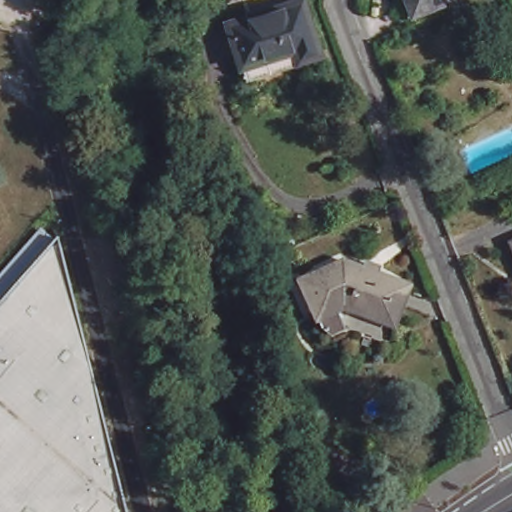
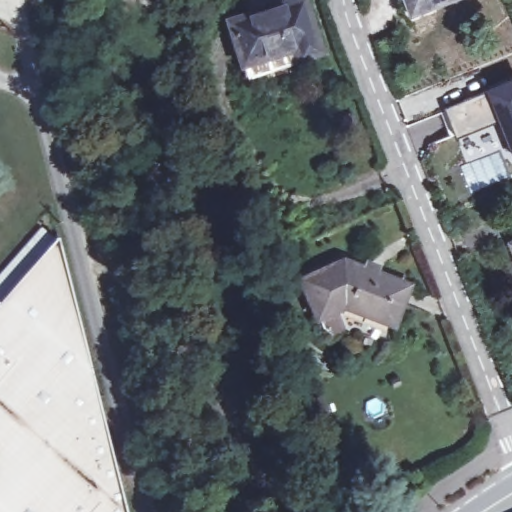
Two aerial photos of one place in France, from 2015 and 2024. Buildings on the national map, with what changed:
unchanged [(233,62),(219,19),(275,0),(296,0),(312,49),(314,57),(288,65),(287,60),(238,76),(233,62)]
unchanged [(409,15),(404,0),(446,0),(409,15)]
new [(512,77),(512,153),(498,122),(485,89),(512,77)]
new [(443,108),(485,89),(498,122),(493,124),(502,147),(510,176),(471,192),(460,164),(465,162),(457,139),(443,108)]
unchanged [(507,238),(512,236),(512,248),(507,238)]
unchanged [(122,512),(0,512),(0,301),(52,242),(122,512)]
unchanged [(327,335),(317,328),(313,318),(297,280),(337,262),(354,268),(359,267),(361,262),(375,268),(372,276),(402,287),(390,326),(355,313),(357,308),(347,304),(332,311),(340,329),(327,335)]
unchanged [(305,402),(320,397),(329,421),(313,427),(305,402)]
unchanged [(423,486),(411,494),(403,482),(416,475),(423,486)]

